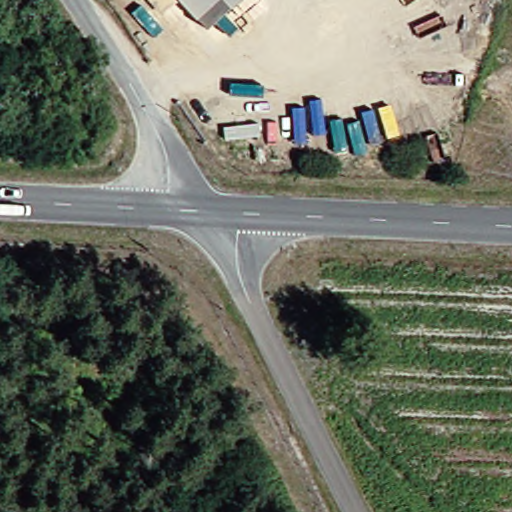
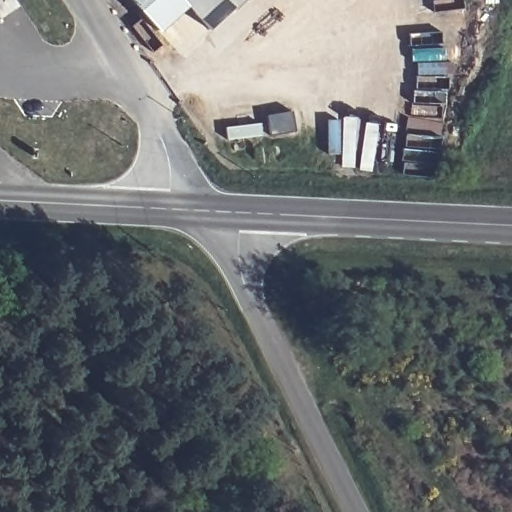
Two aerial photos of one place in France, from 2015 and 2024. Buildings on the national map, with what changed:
new [(129,0),(192,0),(194,2),(160,32),(129,0)]
unchanged [(219,29),(192,0),(251,0),(219,29)]
unchanged [(492,76),(476,79),(474,61),(490,59),(492,76)]

